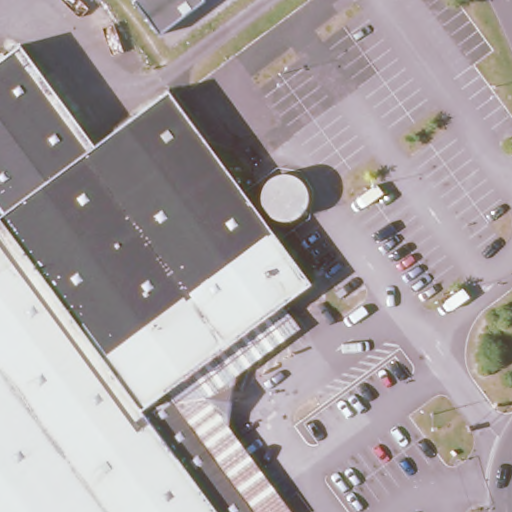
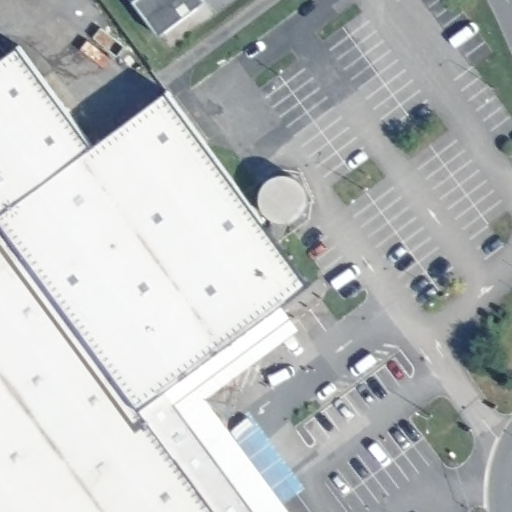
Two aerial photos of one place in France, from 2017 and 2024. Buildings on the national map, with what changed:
unchanged [(164,30),(141,0),(205,0),(164,30)]
unchanged [(0,192),(0,65),(24,47),(86,128),(0,192)]
unchanged [(86,128),(98,143),(171,89),(314,280),(285,301),(168,388),(203,434),(183,448),(230,512),(0,512),(0,192),(86,128)]
unchanged [(299,512),(230,512),(183,448),(203,434),(168,388),(285,301),(304,328),(218,391),(302,509),(299,512)]

